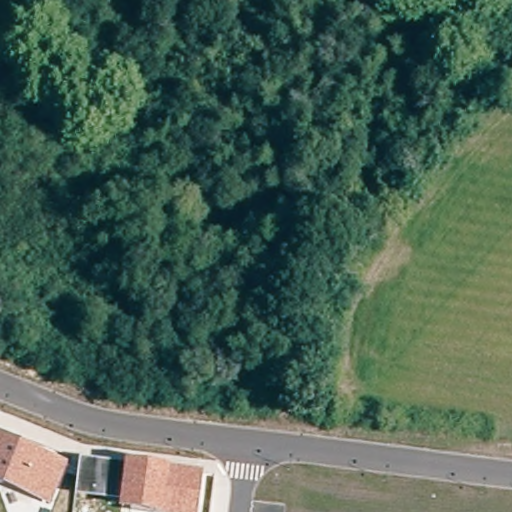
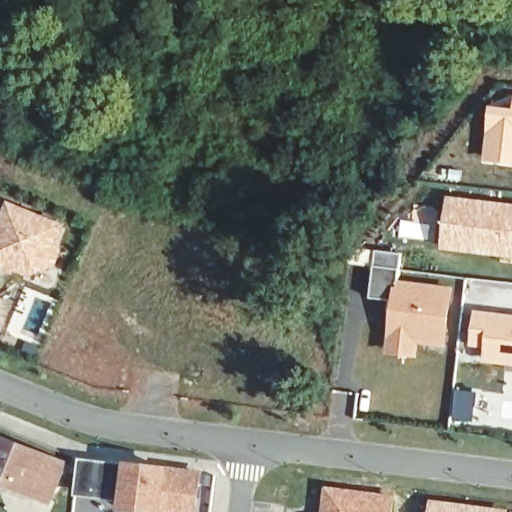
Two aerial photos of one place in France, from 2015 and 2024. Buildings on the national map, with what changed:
new [(512,110),(512,159),(488,157),(494,109),(512,110)]
new [(512,203),(512,258),(441,250),(448,195),(512,203)]
new [(58,243),(62,251),(57,264),(46,271),(38,270),(35,277),(0,267),(0,218),(8,200),(65,223),(58,243)]
new [(455,287),(448,346),(420,342),(416,358),(386,355),(396,280),(455,287)]
new [(512,315),(512,366),(484,362),(486,348),(473,347),(476,310),(512,315)]
unchanged [(0,434),(42,452),(66,462),(50,501),(35,494),(5,482),(0,479),(0,434)]
unchanged [(123,466),(123,461),(166,467),(202,472),(196,512),(128,512),(118,511),(119,500),(75,496),(79,458),(123,466)]
new [(324,485),(394,495),(392,512),(319,512),(324,485)]
new [(509,508),(509,512),(429,512),(431,500),(509,508)]

